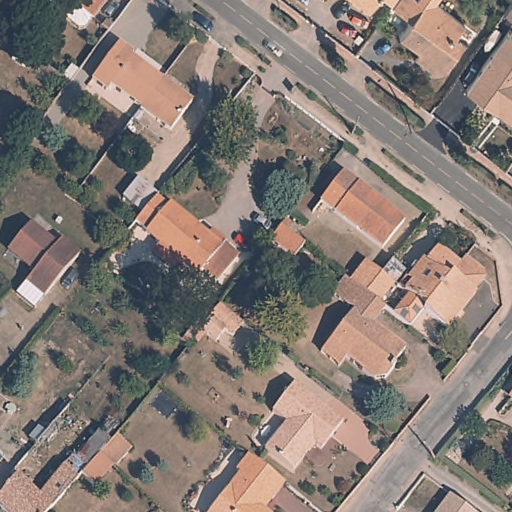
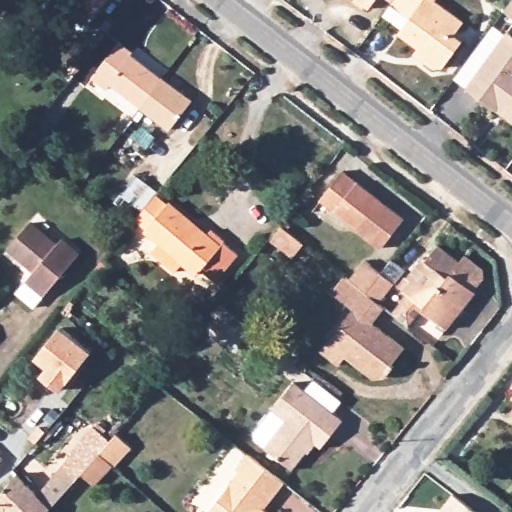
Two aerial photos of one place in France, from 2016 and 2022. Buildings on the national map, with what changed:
unchanged [(77,10),(85,0),(112,0),(94,22),(87,31),(83,32),(68,21),(77,10)]
unchanged [(363,0),(377,0),(372,7),(363,0)]
unchanged [(385,0),(395,0),(391,5),(385,0)]
unchanged [(397,36),(409,20),(391,6),(391,5),(395,0),(436,0),(433,4),(462,26),(453,38),(462,45),(444,70),(432,71),(424,66),(412,56),(416,50),(397,36)]
unchanged [(509,0),(512,0),(512,12),(504,6),(509,0)]
unchanged [(465,81),(507,26),(512,29),(512,116),(495,104),(465,81)]
unchanged [(111,89),(107,94),(93,82),(121,47),(135,58),(133,61),(162,84),(140,112),(111,89)]
unchanged [(168,134),(140,112),(162,84),(190,105),(168,134)]
unchanged [(380,253),(319,204),(342,177),(403,224),(380,253)]
unchanged [(161,257),(167,249),(154,238),(155,236),(142,225),(163,200),(176,211),(177,209),(215,240),(220,234),(234,245),(232,247),(246,258),(224,286),(209,273),(205,278),(190,266),(183,275),(161,257)]
unchanged [(41,229),(63,247),(68,242),(84,255),(51,296),(34,281),(41,273),(19,255),(41,229)]
unchanged [(286,262),(262,244),(273,230),(297,249),(286,262)]
unchanged [(387,312),(410,283),(407,280),(423,259),(426,262),(438,246),(460,264),(436,295),(425,309),(423,312),(422,313),(409,330),(393,317),(387,312)]
unchanged [(331,340),(352,312),(331,295),(344,278),(351,283),(366,264),(382,276),(395,286),(379,306),(384,310),(373,325),(404,350),(392,366),(394,367),(385,379),(373,380),(345,359),(338,367),(321,352),(331,340)]
unchanged [(465,285),(476,294),(447,332),(422,313),(423,312),(425,309),(436,295),(460,264),(473,274),(465,285)]
unchanged [(193,332),(201,323),(212,308),(236,327),(226,339),(218,332),(209,344),(193,332)]
new [(59,333),(89,356),(59,395),(41,380),(47,372),(35,363),(59,333)]
unchanged [(298,386),(346,424),(324,451),(318,446),(296,473),(269,451),(290,424),(276,413),(298,386)]
unchanged [(512,398),(512,402),(510,401),(512,398)]
unchanged [(0,499),(0,498),(8,488),(21,472),(39,489),(89,438),(103,452),(115,437),(132,452),(117,470),(113,467),(109,471),(95,488),(82,477),(58,505),(51,512),(12,512),(5,505),(0,499)]
unchanged [(8,488),(0,498),(0,450),(17,467),(21,472),(8,488)]
unchanged [(266,498),(258,508),(263,512),(207,512),(236,475),(233,472),(245,457),(282,486),(270,501),(266,498)]

